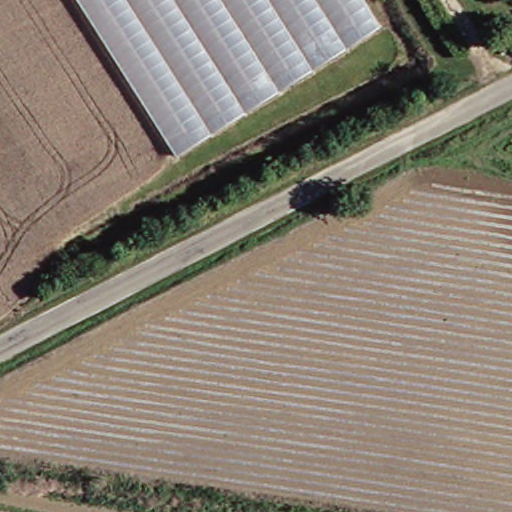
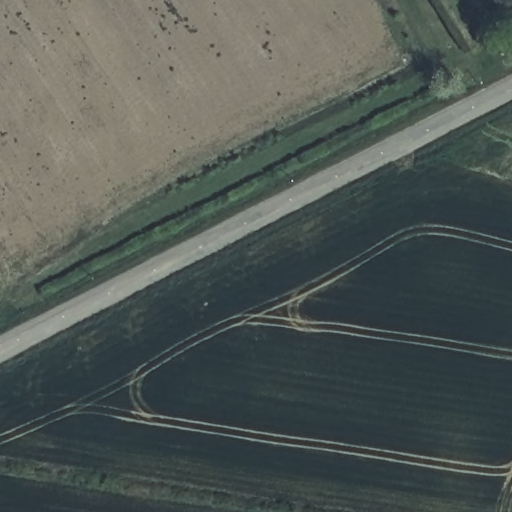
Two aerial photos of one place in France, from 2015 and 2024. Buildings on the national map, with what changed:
demolished [(378,27),(176,159),(75,0),(361,0),(378,27)]

